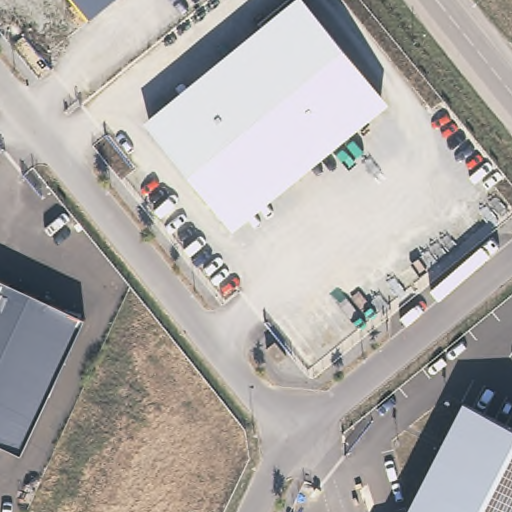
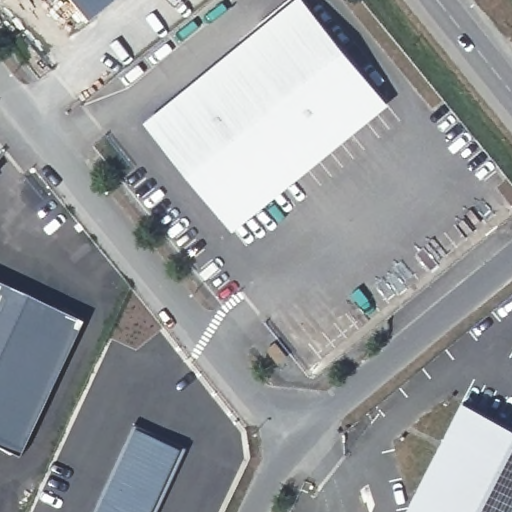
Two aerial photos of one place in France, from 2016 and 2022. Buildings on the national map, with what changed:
unchanged [(69,0),(115,0),(86,22),(69,0)]
unchanged [(234,232),(146,121),(295,0),(303,0),(389,105),(234,232)]
unchanged [(10,282),(9,285),(22,291),(24,288),(37,295),(36,297),(50,303),(50,301),(64,307),(63,310),(76,316),(77,313),(85,317),(21,453),(0,443),(0,277),(10,282)]
unchanged [(285,352),(277,360),(266,347),(275,340),(285,352)]
unchanged [(512,429),(512,512),(408,512),(464,404),(512,429)]
new [(182,447),(152,512),(96,512),(136,426),(182,447)]

